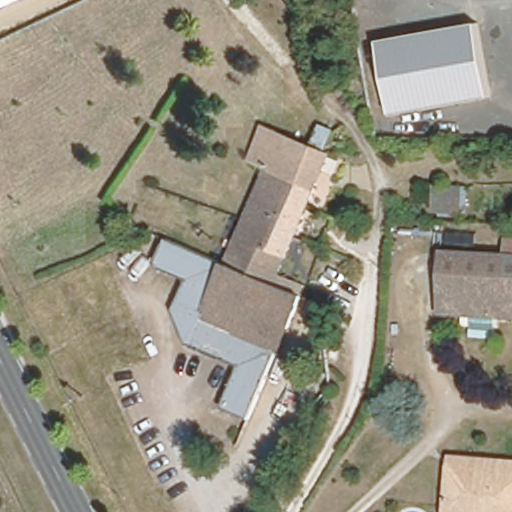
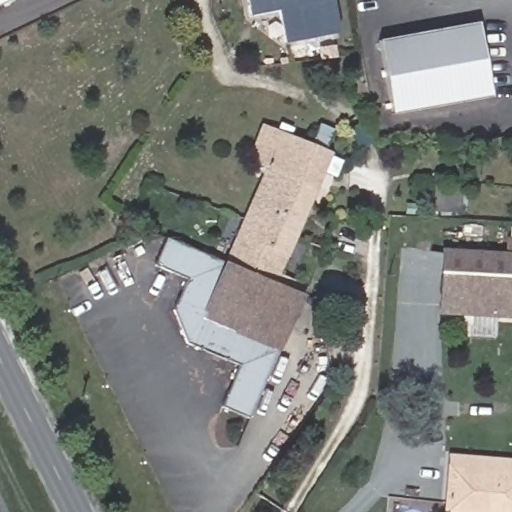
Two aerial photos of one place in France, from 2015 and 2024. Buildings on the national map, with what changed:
unchanged [(0,0),(8,0),(0,4),(0,0)]
new [(284,44),(277,11),(251,17),(247,0),(330,0),(338,32),(284,44)]
unchanged [(390,113),(377,37),(480,22),(495,96),(390,113)]
unchanged [(267,167),(252,160),(265,129),(328,156),(280,274),(232,256),(267,167)]
new [(442,190),(468,191),(467,215),(442,214),(442,190)]
unchanged [(307,285),(284,349),(172,305),(185,274),(155,261),(168,231),(232,256),(280,274),(307,285)]
unchanged [(439,313),(439,290),(441,245),(502,246),(504,246),(512,246),(512,315),(439,313)]
unchanged [(284,349),(257,417),(226,404),(240,365),(192,346),(172,305),(284,349)]
unchanged [(444,448),(512,457),(512,472),(444,462),(444,448)]
unchanged [(438,505),(444,462),(512,472),(512,512),(437,512),(438,505)]

